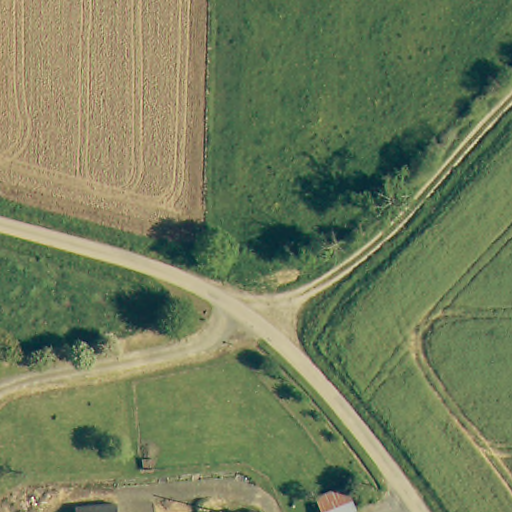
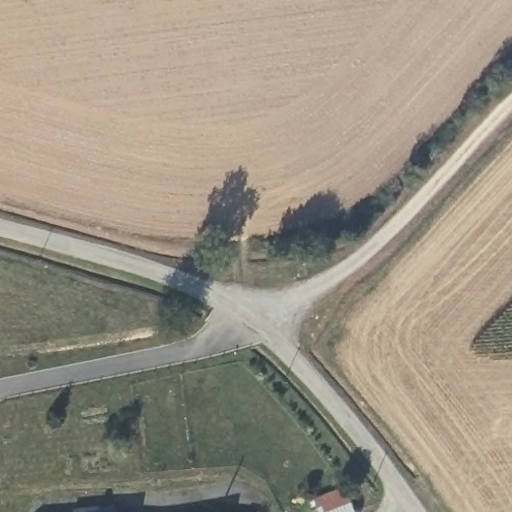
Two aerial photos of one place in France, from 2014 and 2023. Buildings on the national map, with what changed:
unchanged [(353,512),(320,512),(315,499),(346,487),(356,511),(353,512)]
unchanged [(72,509),(114,507),(115,512),(73,512),(72,509)]

